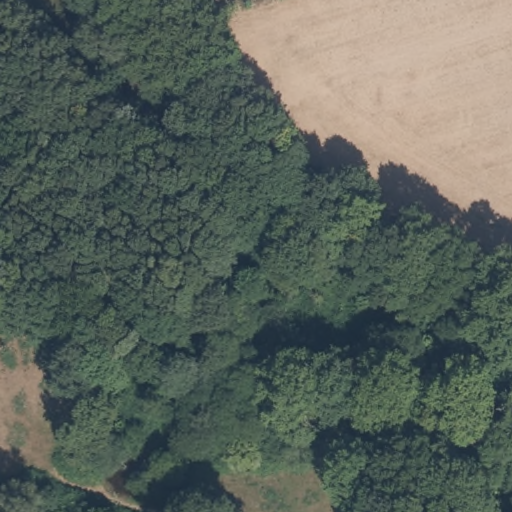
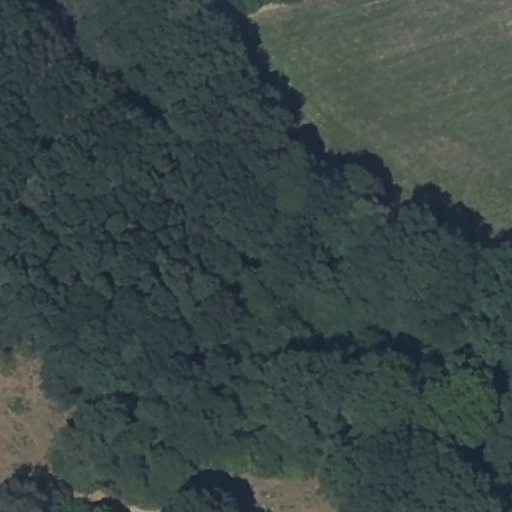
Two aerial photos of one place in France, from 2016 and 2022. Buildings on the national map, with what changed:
unchanged [(134,71),(176,81),(161,143),(121,133),(134,71)]

